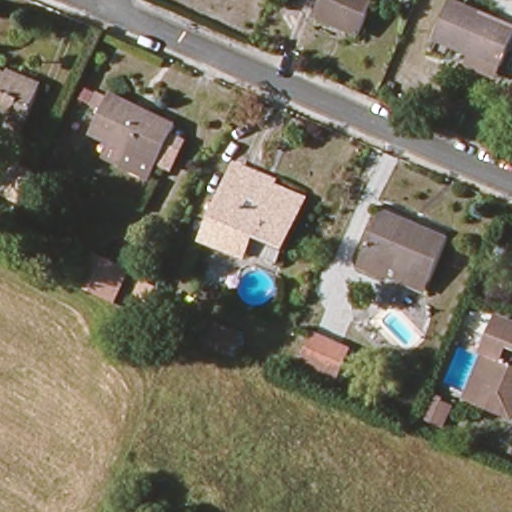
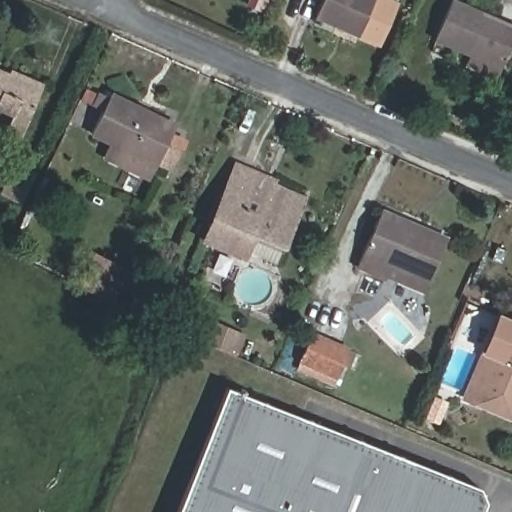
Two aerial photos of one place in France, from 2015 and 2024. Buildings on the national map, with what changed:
unchanged [(357,37),(312,17),(320,0),(374,0),(357,37)]
unchanged [(436,40),(453,2),(512,28),(512,50),(503,69),(436,40)]
unchanged [(6,130),(15,111),(0,105),(0,68),(11,72),(12,69),(45,82),(30,117),(22,137),(6,130)]
unchanged [(152,176),(123,161),(130,148),(112,139),(93,130),(104,107),(95,103),(101,89),(111,94),(112,91),(178,123),(152,176)]
unchanged [(278,265),(248,253),(246,258),(214,244),(218,233),(222,226),(213,222),(237,166),(277,183),(275,188),(306,200),(278,265)]
unchanged [(425,289),(359,260),(378,217),(444,244),(425,289)]
new [(94,254),(125,269),(110,300),(79,285),(94,254)]
unchanged [(473,405),(492,359),(480,354),(495,319),(512,326),(512,407),(507,419),(473,405)]
unchanged [(238,359),(219,351),(214,349),(214,348),(211,347),(219,329),(227,332),(246,340),(238,359)]
unchanged [(305,369),(307,362),(319,335),(357,351),(345,379),(342,385),(305,369)]
new [(501,498),(496,512),(190,512),(237,393),(501,498)]
unchanged [(452,434),(436,428),(445,407),(461,413),(452,434)]

